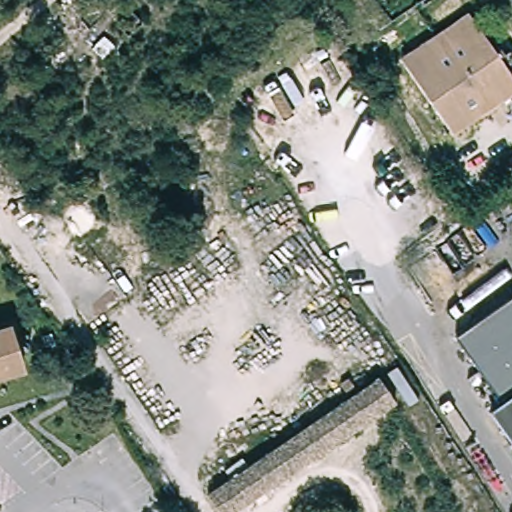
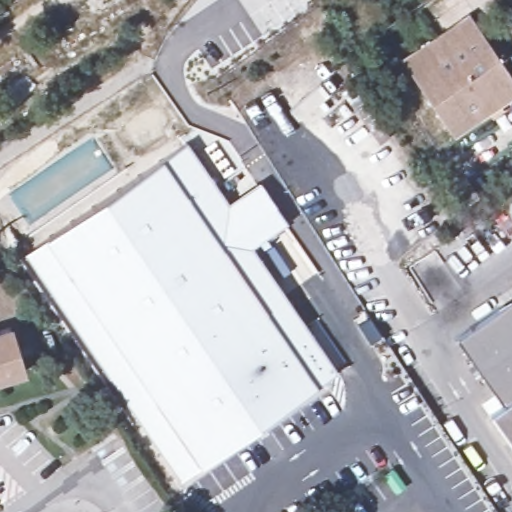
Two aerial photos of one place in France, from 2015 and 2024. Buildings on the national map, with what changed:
unchanged [(512,84),(512,95),(451,139),(399,66),(466,19),(512,84)]
new [(182,482),(25,255),(186,144),(227,204),(260,182),(286,222),(255,244),(338,370),(182,482)]
unchanged [(512,447),(486,411),(500,401),(453,336),(512,295),(512,447)]
unchanged [(24,367),(0,374),(0,327),(11,324),(24,367)]
unchanged [(233,512),(222,512),(210,492),(382,379),(397,404),(233,512)]

